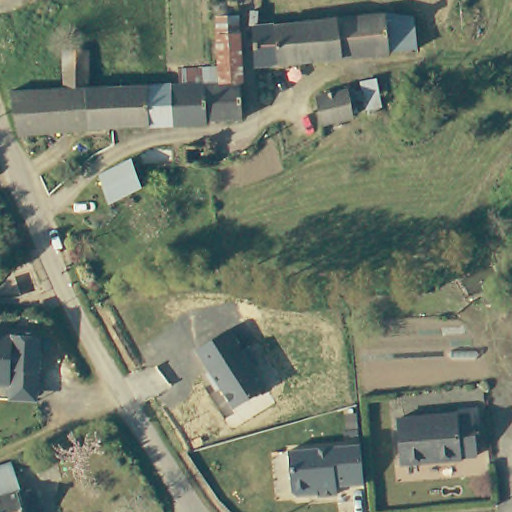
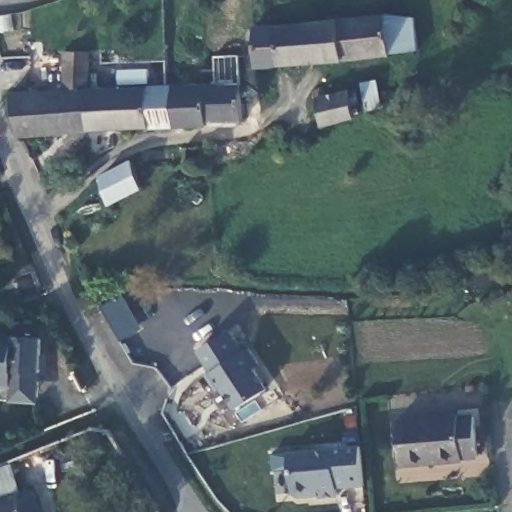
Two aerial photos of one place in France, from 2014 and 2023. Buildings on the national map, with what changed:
unchanged [(216,4),(247,5),(247,87),(217,90),(216,4)]
unchanged [(425,49),(401,52),(347,63),(347,23),(393,12),(423,18),(425,49)]
unchanged [(261,69),(258,29),(263,28),(281,26),(347,23),(347,63),(286,67),(266,69),(261,69)]
unchanged [(174,89),(176,129),(20,140),(12,98),(67,95),(67,56),(92,56),(92,94),(169,90),(174,89)]
unchanged [(176,129),(174,89),(182,89),(182,74),(206,74),(206,90),(207,126),(176,129)]
unchanged [(247,87),(248,124),(207,126),(206,90),(217,90),(247,87)]
unchanged [(326,95),(352,93),(355,114),(345,116),(330,119),(326,95)]
unchanged [(104,176),(137,156),(151,180),(121,199),(107,179),(104,176)]
unchanged [(229,330),(241,350),(249,346),(272,386),(262,392),(232,409),(196,350),(229,330)]
unchanged [(13,399),(13,384),(0,384),(0,335),(42,336),(41,371),(40,401),(13,399)]
unchanged [(470,412),(470,414),(483,414),(487,453),(471,454),(471,457),(411,462),(409,439),(407,416),(470,412)]
unchanged [(338,494),(340,502),(321,504),(320,498),(313,498),(310,502),(298,503),(295,499),(292,458),(363,453),(366,492),(338,494)]
unchanged [(16,465),(22,493),(41,489),(47,512),(0,512),(0,471),(16,465)]

